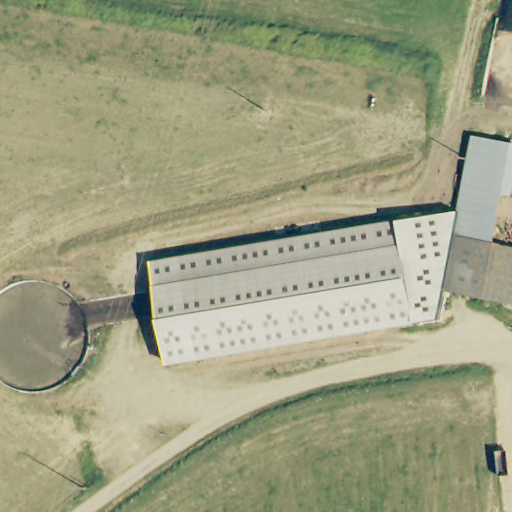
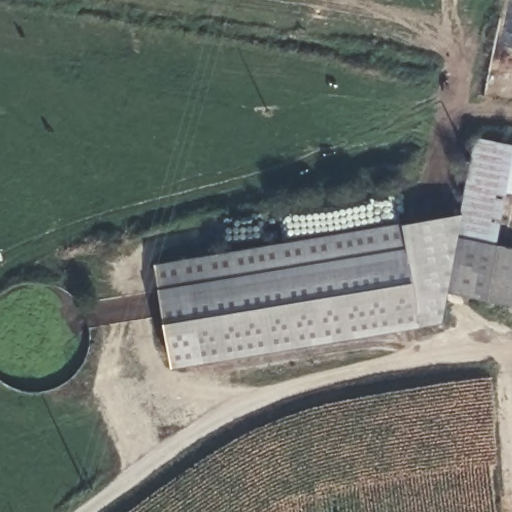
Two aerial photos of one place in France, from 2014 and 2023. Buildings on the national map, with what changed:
unchanged [(512,144),(512,160),(495,247),(456,239),(477,138),(512,144)]
unchanged [(443,321),(419,325),(170,368),(155,263),(402,223),(462,213),(456,239),(445,293),(443,321)]
unchanged [(495,247),(512,250),(512,307),(445,293),(456,239),(495,247)]

